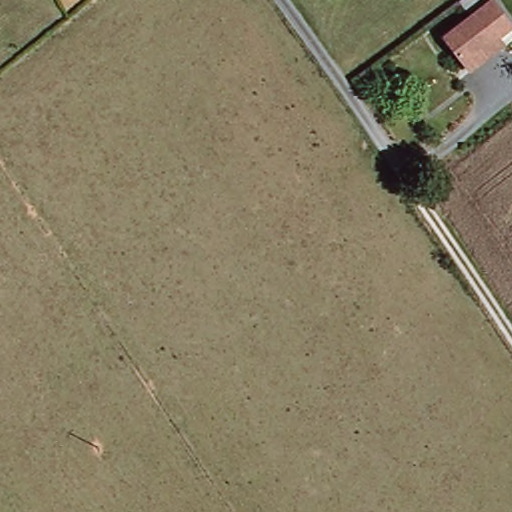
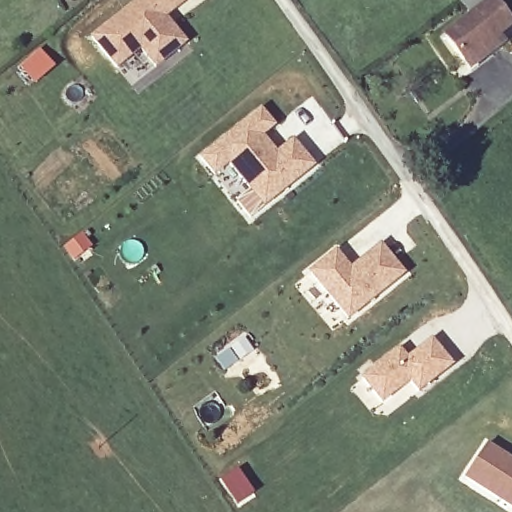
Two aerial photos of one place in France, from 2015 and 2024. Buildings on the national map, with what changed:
new [(190,38),(160,63),(145,44),(122,63),(97,32),(137,0),(185,0),(170,12),(177,21),(190,38)]
unchanged [(470,70),(461,59),(445,33),(488,0),(497,0),(512,19),(512,24),(497,34),(503,44),(470,70)]
new [(45,50),(57,65),(38,82),(25,66),(45,50)]
new [(264,136),(277,153),(294,140),(317,168),(250,221),(235,203),(251,191),(230,166),(216,176),(200,157),(262,109),(275,126),(264,136)]
new [(340,249),(355,267),(385,243),(409,272),(353,318),(315,271),(340,249)]
new [(420,394),(410,382),(381,404),(360,380),(400,348),(407,358),(434,339),(455,366),(420,394)]
new [(489,443),(512,457),(512,505),(468,478),(489,443)]

